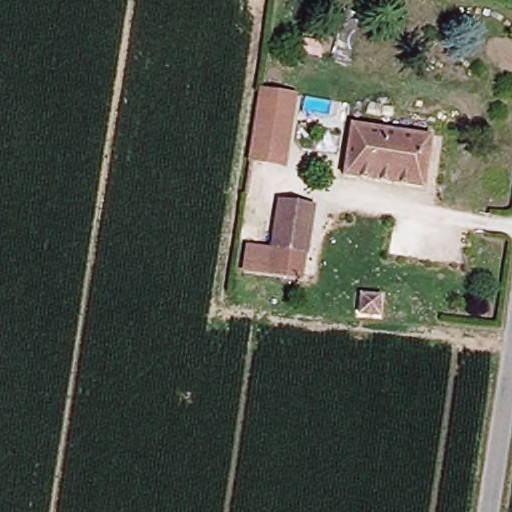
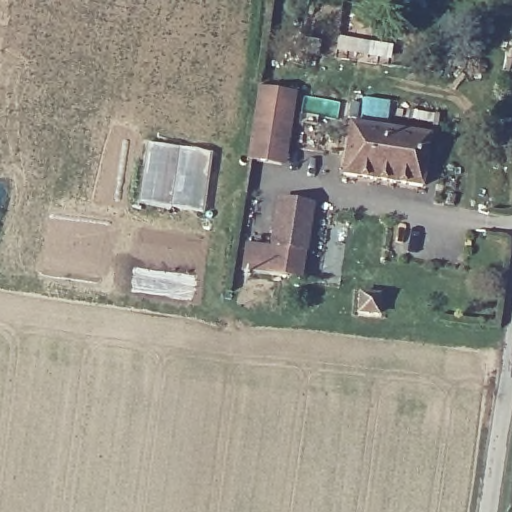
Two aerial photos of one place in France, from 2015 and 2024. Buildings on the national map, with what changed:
unchanged [(258,87),(297,95),(285,168),(247,163),(258,87)]
unchanged [(431,135),(424,189),(345,176),(353,121),(431,135)]
new [(146,141),(215,152),(205,214),(137,202),(146,141)]
unchanged [(245,244),(272,248),(279,205),(313,210),(302,285),(266,280),(240,275),(245,244)]
new [(133,266),(196,277),(192,301),(130,291),(133,266)]

